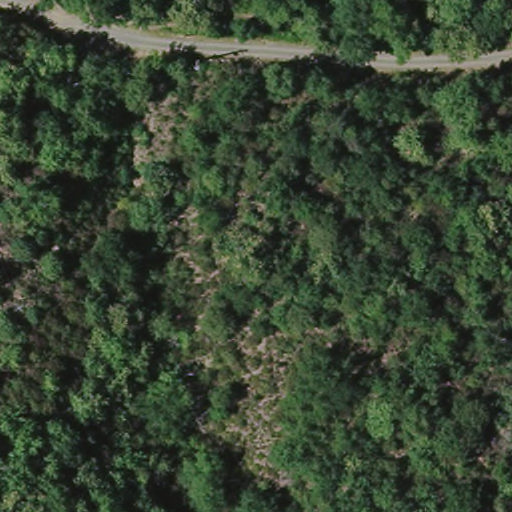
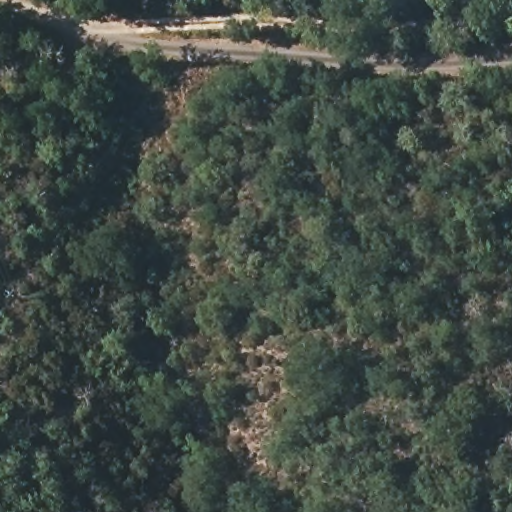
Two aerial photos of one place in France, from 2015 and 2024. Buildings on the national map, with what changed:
unchanged [(250,34),(264,35),(262,46),(248,44),(250,34)]

